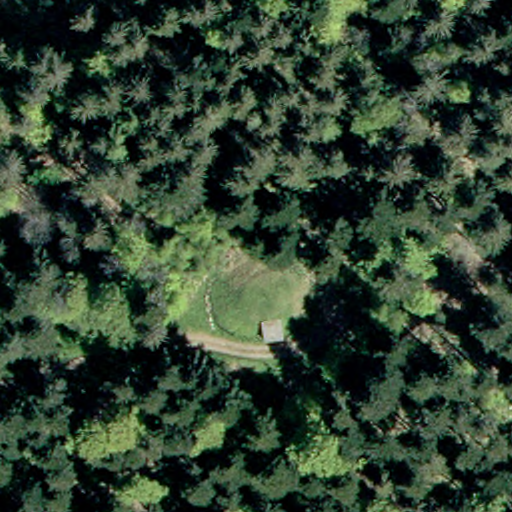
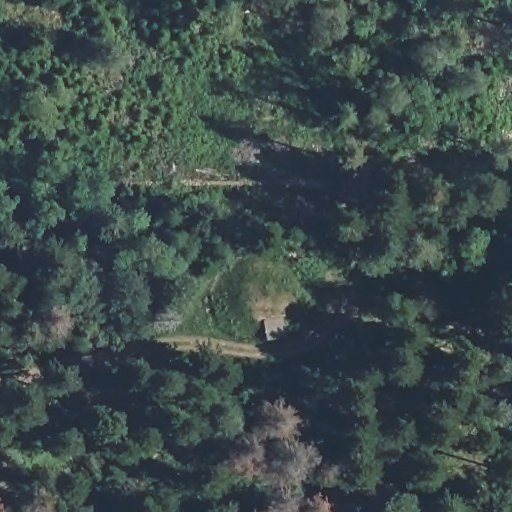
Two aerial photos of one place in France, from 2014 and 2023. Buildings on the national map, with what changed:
[]

